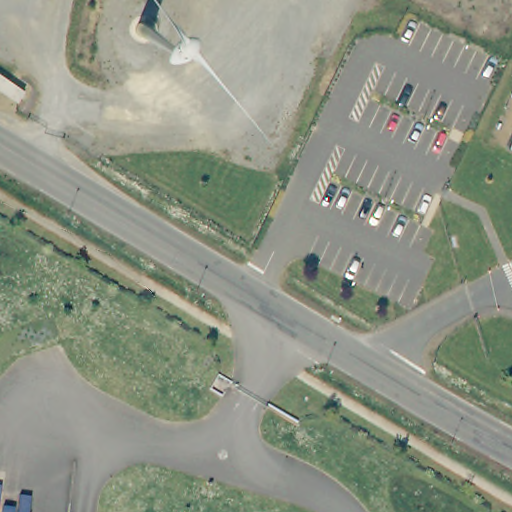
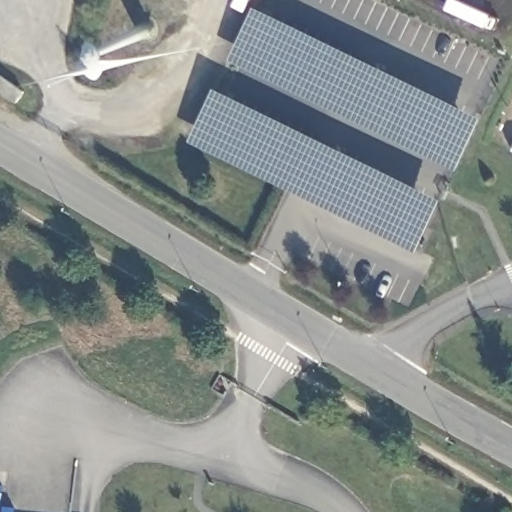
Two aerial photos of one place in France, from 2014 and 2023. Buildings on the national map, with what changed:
new [(486,115),(459,170),(234,59),(261,2),(486,115)]
new [(448,196),(421,250),(195,139),(220,87),(448,196)]

